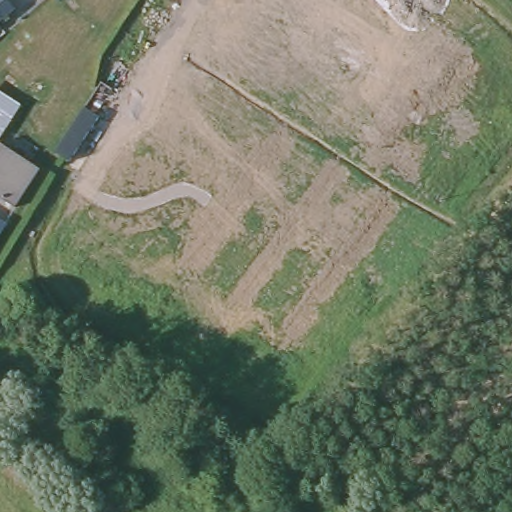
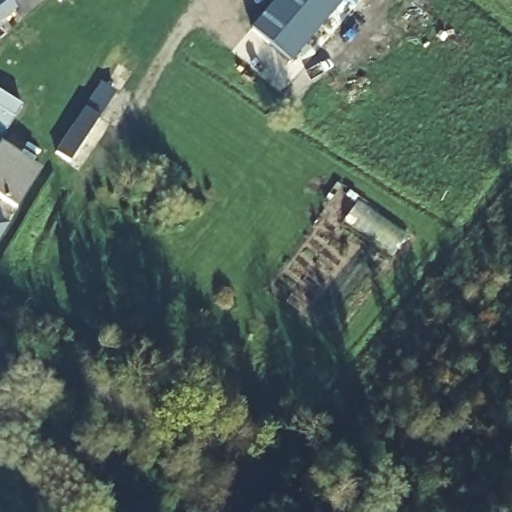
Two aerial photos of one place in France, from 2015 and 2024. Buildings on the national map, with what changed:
unchanged [(0,0),(8,10),(0,18),(0,0)]
new [(290,61),(252,26),(275,0),(344,0),(290,61)]
unchanged [(96,81),(112,91),(97,118),(95,117),(68,163),(54,154),(81,108),(96,81)]
unchanged [(40,166),(16,204),(0,194),(0,146),(2,142),(40,166)]

